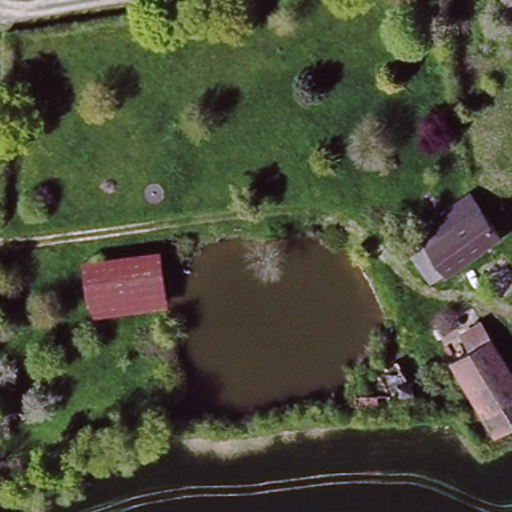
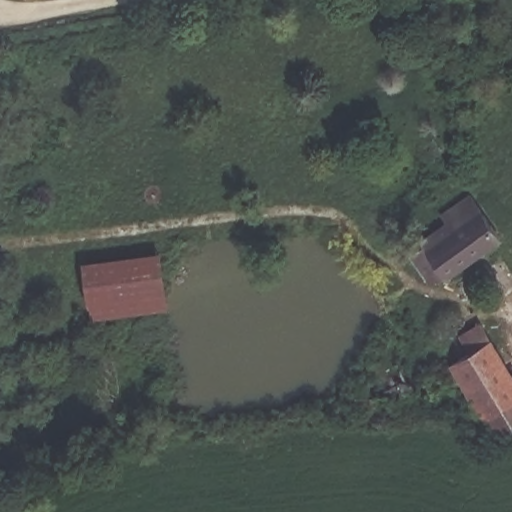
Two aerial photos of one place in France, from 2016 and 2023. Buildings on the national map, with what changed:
unchanged [(431,246),(426,235),(478,203),(492,227),(502,221),(509,234),(448,271),(443,263),(429,271),(418,252),(431,246)]
unchanged [(162,249),(170,307),(96,318),(90,258),(162,249)]
unchanged [(467,346),(492,333),(512,369),(512,440),(501,446),(460,363),(472,356),(467,346)]
unchanged [(386,398),(380,376),(402,365),(415,396),(390,410),(355,409),(355,397),(386,398)]

